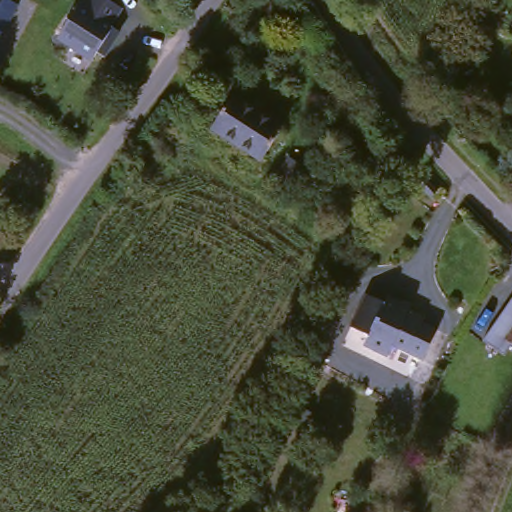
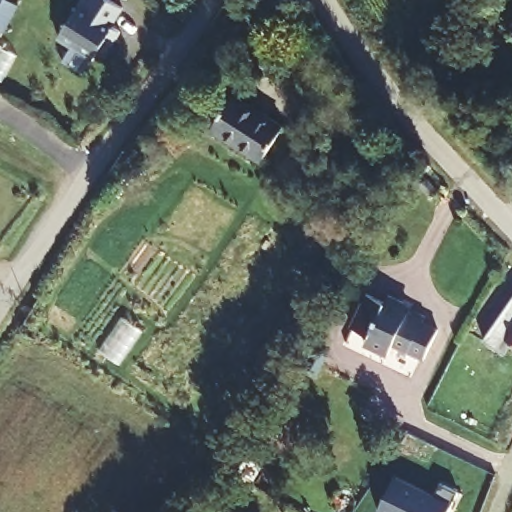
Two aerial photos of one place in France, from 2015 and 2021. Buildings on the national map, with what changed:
unchanged [(0,30),(0,0),(10,0),(21,6),(6,32),(0,30)]
unchanged [(116,30),(99,55),(94,52),(89,60),(54,37),(78,0),(81,0),(84,1),(85,0),(107,0),(118,7),(106,25),(116,30)]
unchanged [(278,141),(252,170),(211,131),(235,105),(278,141)]
unchanged [(296,152),(316,168),(299,189),(279,173),(296,152)]
unchanged [(379,311),(382,305),(398,313),(397,318),(419,328),(418,336),(430,344),(415,372),(385,358),(379,370),(357,359),(363,346),(344,337),(361,301),(379,311)]
unchanged [(496,340),(512,318),(512,350),(496,340)]
unchanged [(326,360),(329,355),(341,363),(339,365),(331,381),(318,374),(326,360)]
new [(394,478),(434,497),(439,485),(457,492),(448,512),(379,512),(394,478)]

